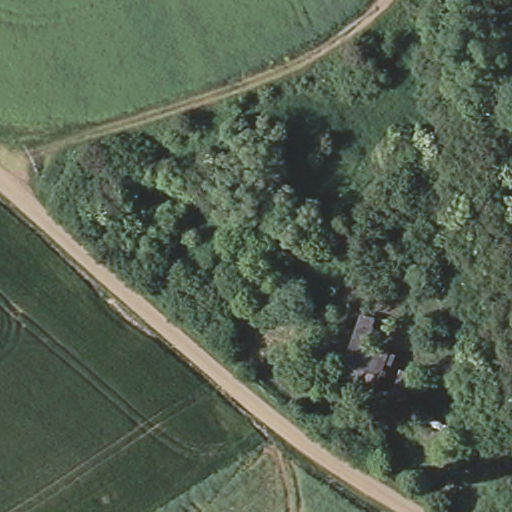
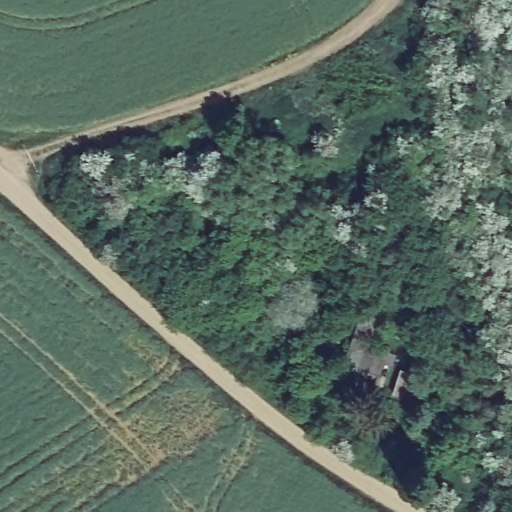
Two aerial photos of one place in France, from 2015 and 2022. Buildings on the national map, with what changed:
unchanged [(366,338),(386,347),(375,388),(335,371),(355,308),(372,314),(366,338)]

